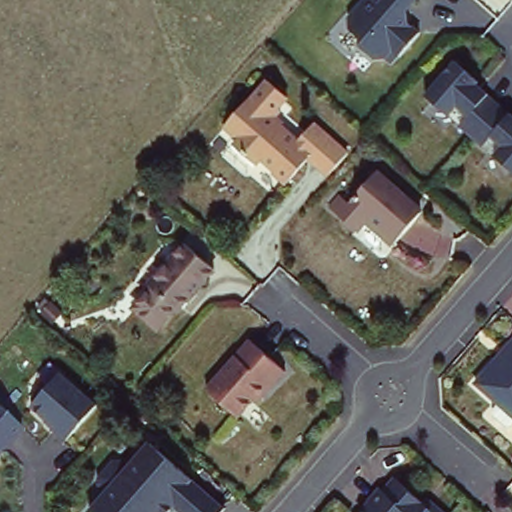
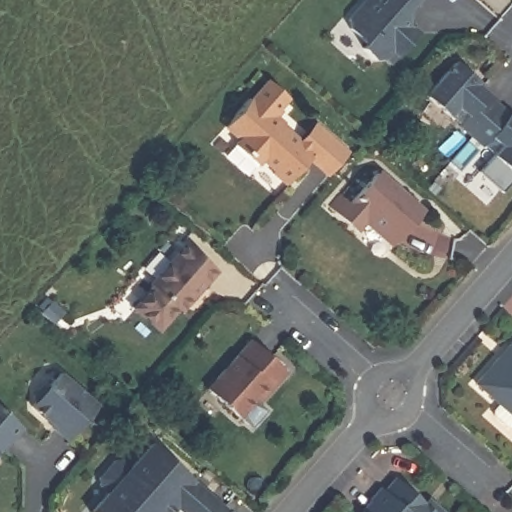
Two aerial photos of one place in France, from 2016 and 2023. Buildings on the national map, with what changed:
unchanged [(408,7),(406,18),(420,30),(399,53),(392,48),(385,57),(376,57),(363,47),(367,42),(350,27),(348,18),(364,0),(414,0),(408,7)]
unchanged [(455,55),(478,76),(477,79),(488,88),(487,90),(508,109),(510,108),(512,110),(512,166),(493,150),(502,141),(491,131),(482,141),(459,120),(467,111),(457,101),(448,110),(425,90),(455,55)]
unchanged [(272,167),(275,165),(262,154),(257,160),(238,144),(241,140),(227,128),(252,99),(254,101),(271,82),(289,98),(280,109),(283,111),(275,120),(293,136),(307,148),(307,156),(287,180),(272,167)]
unchanged [(308,118),(342,148),(322,170),(307,156),(307,148),(293,136),(308,118)]
unchanged [(398,238),(370,213),(360,224),(334,201),(343,190),(352,197),(379,168),(425,208),(398,238)]
unchanged [(182,306),(179,303),(162,323),(140,303),(157,283),(154,281),(190,240),(218,264),(182,306)]
unchanged [(255,335),(290,366),(276,383),(272,379),(244,412),(212,384),(255,335)]
unchanged [(475,383),(512,340),(512,414),(475,383)]
unchanged [(70,438),(32,406),(64,370),(104,401),(70,438)]
unchanged [(0,453),(0,405),(24,426),(0,453)]
unchanged [(223,512),(97,512),(94,509),(111,489),(102,481),(102,473),(116,457),(125,456),(134,464),(155,439),(230,505),(223,512)]
unchanged [(444,512),(364,512),(400,475),(444,512)]

